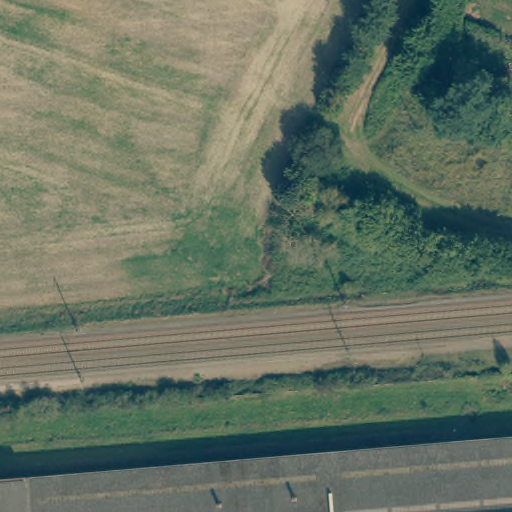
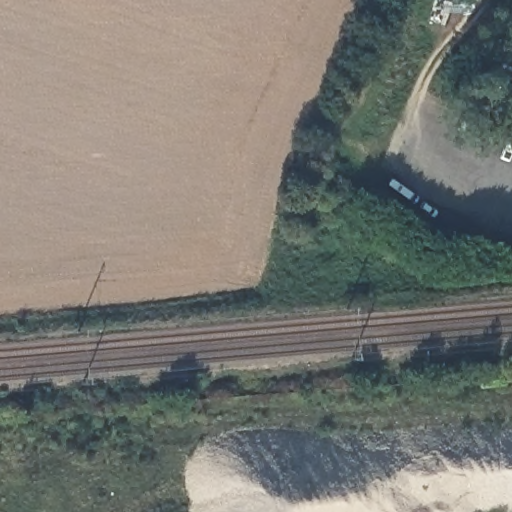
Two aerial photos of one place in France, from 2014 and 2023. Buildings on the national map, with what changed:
demolished [(512,436),(512,512),(0,512),(0,478),(512,436)]

